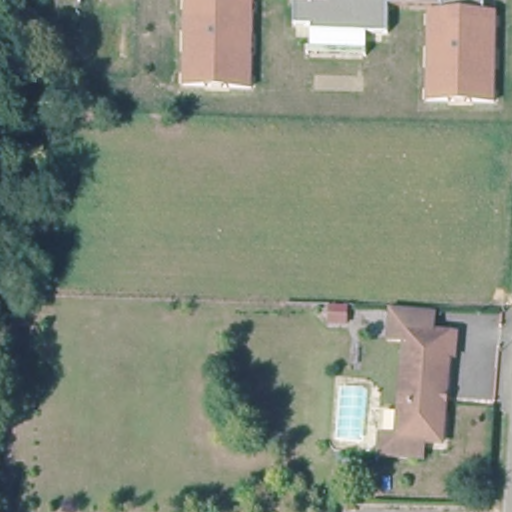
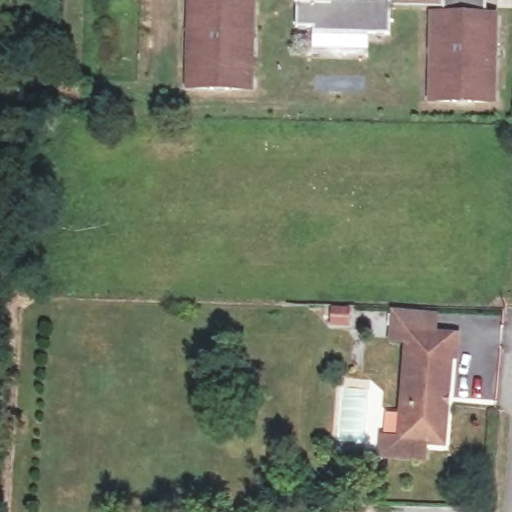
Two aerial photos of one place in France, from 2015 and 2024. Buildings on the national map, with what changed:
unchanged [(256,0),(256,25),(255,87),(188,87),(188,25),(188,0),(243,0),(256,0)]
unchanged [(487,9),(499,10),(498,27),(498,97),(430,96),(431,27),(431,9),(443,9),(444,3),(391,2),(391,26),(391,30),(314,30),(314,26),(314,25),(297,25),(297,1),(296,1),(296,0),(487,0),(487,9)]
unchanged [(409,332),(408,343),(391,341),(393,311),(436,315),(436,335),(409,332)]
unchanged [(377,457),(378,433),(396,435),(408,343),(409,332),(436,335),(461,337),(460,358),(451,357),(441,445),(422,443),(421,462),(377,457)]

